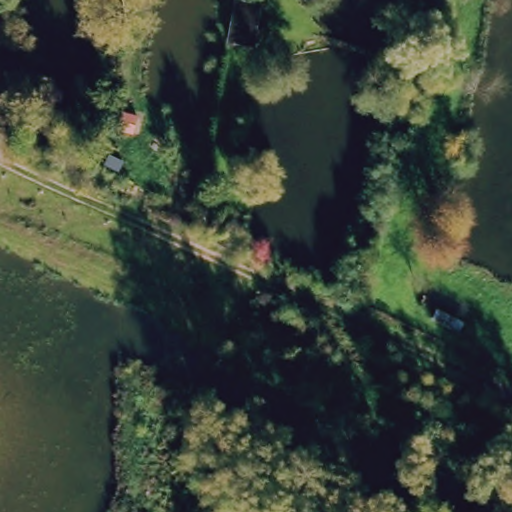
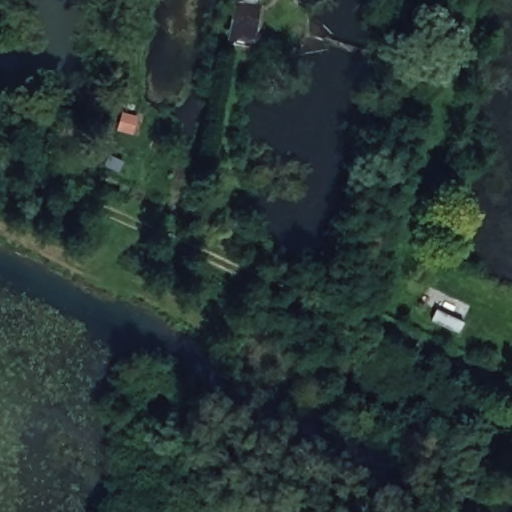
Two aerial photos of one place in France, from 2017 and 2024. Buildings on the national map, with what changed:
unchanged [(235,0),(259,0),(253,45),(227,43),(235,0)]

